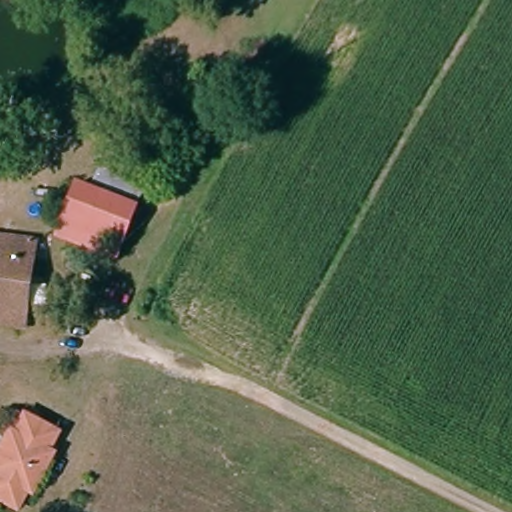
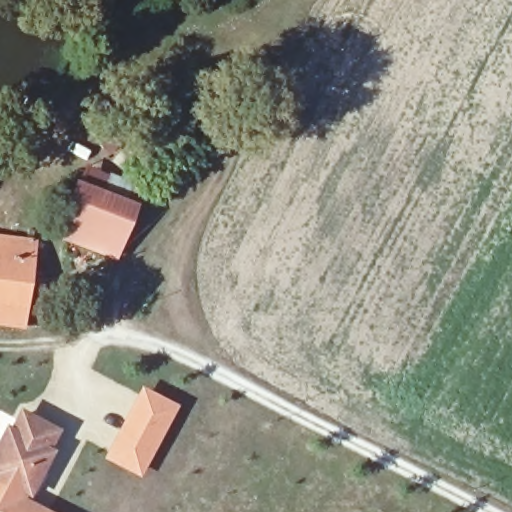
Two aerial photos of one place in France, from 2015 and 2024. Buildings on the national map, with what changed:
unchanged [(136,121),(125,131),(94,104),(105,93),(136,121)]
unchanged [(136,204),(114,257),(59,233),(80,180),(136,204)]
unchanged [(0,234),(33,239),(31,257),(21,328),(0,324),(0,234)]
new [(141,384),(180,404),(141,478),(103,458),(141,384)]
unchanged [(45,452),(53,456),(35,492),(26,488),(16,510),(0,502),(0,444),(6,433),(13,436),(24,415),(55,430),(45,452)]
new [(21,501),(23,497),(51,512),(0,512),(0,502),(16,510),(21,501)]

